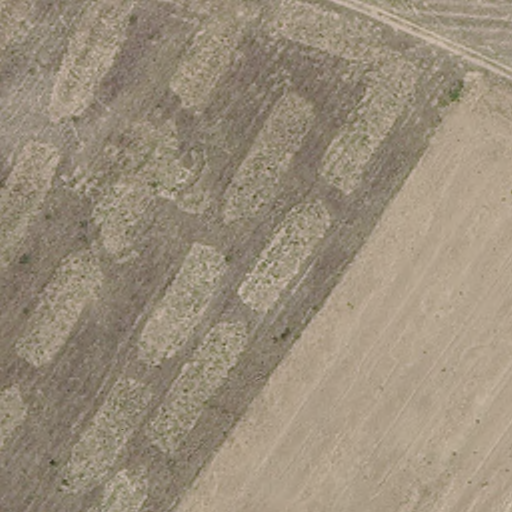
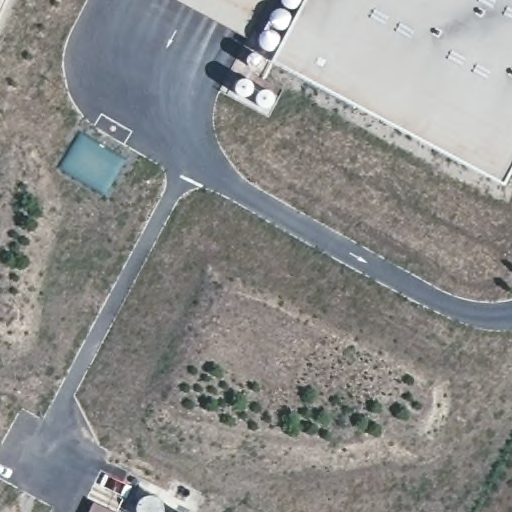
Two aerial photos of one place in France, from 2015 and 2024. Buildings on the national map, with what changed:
new [(172,0),(274,0),(251,43),(172,0)]
new [(267,52),(252,82),(277,95),(267,110),(230,90),(257,41),(278,0),(303,0),(274,55),(267,52)]
new [(274,55),(303,0),(512,0),(512,166),(502,184),(272,60),(274,55)]
new [(95,501),(114,512),(89,512),(95,501)]

